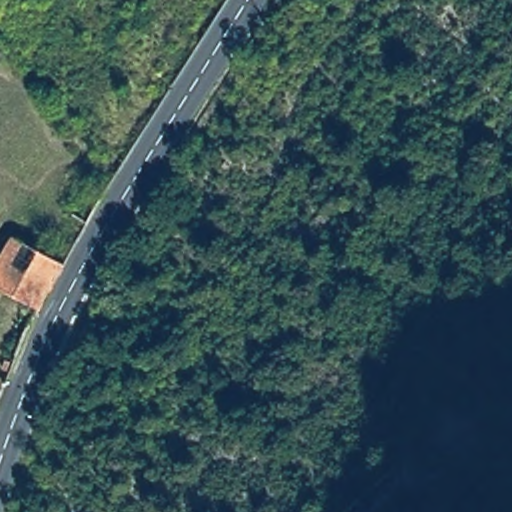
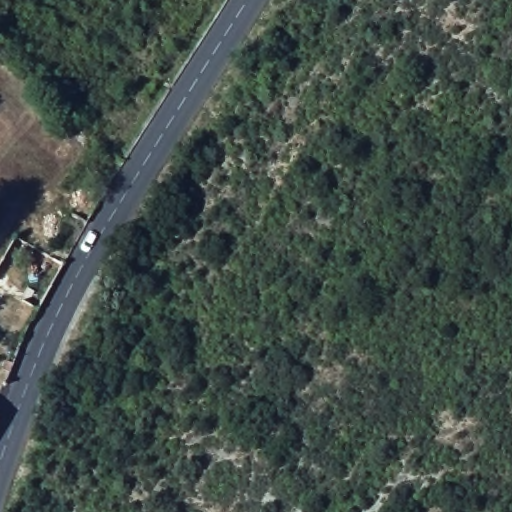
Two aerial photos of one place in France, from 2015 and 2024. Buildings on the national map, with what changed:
unchanged [(65,262),(39,309),(0,288),(0,244),(8,228),(65,262)]

